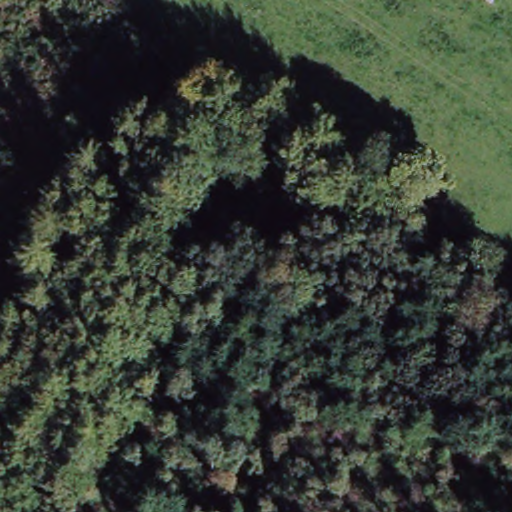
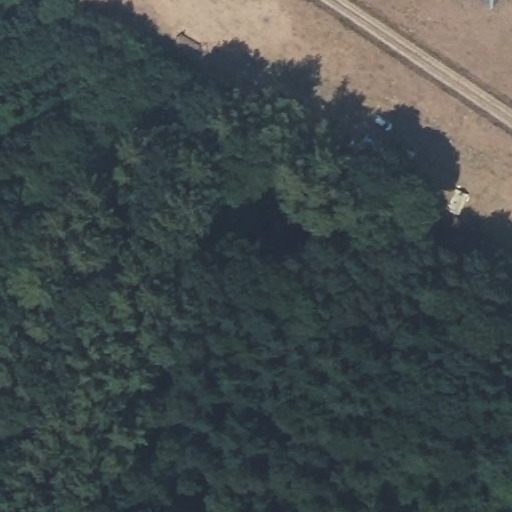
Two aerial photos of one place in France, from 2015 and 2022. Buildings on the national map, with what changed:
unchanged [(490,11),(475,0),(498,0),(490,11)]

